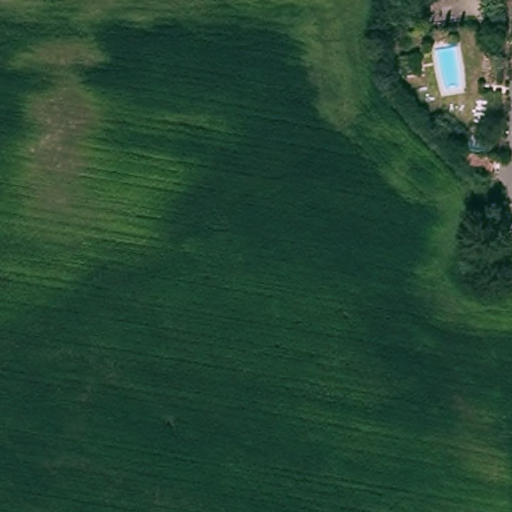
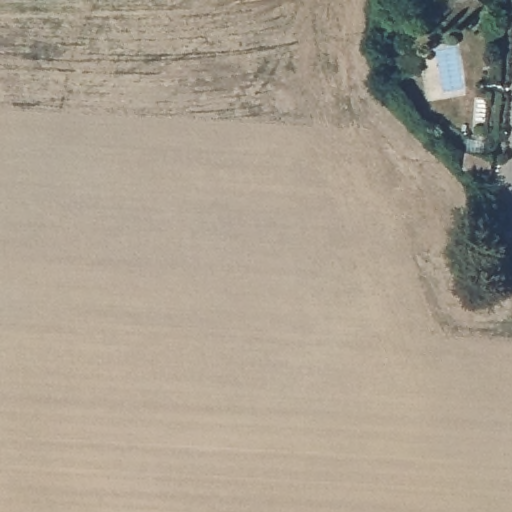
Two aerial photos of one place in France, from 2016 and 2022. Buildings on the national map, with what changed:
unchanged [(493,180),(487,179),(465,176),(467,157),(489,159),(495,160),(493,180)]

